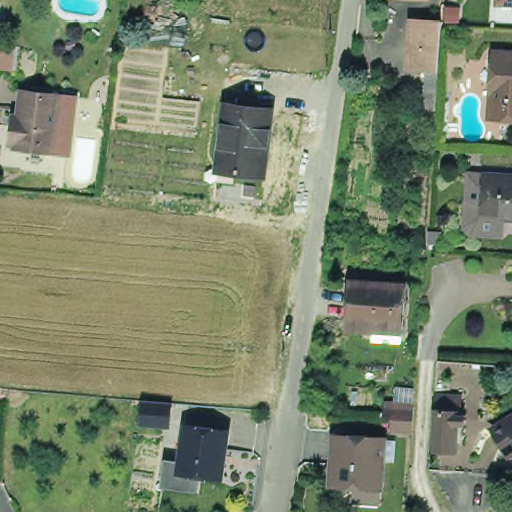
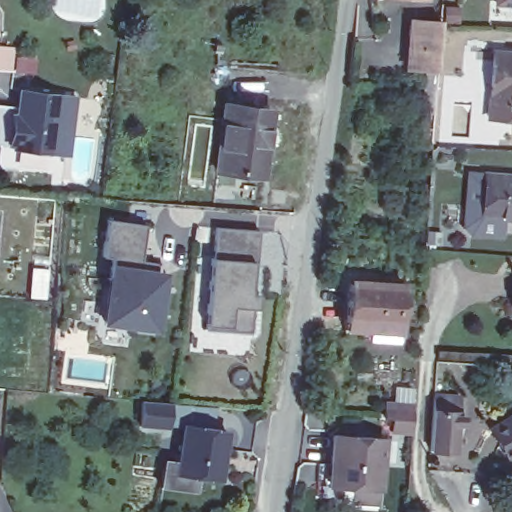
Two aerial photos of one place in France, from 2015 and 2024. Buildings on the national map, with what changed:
unchanged [(505,6),(505,0),(512,0),(512,7),(505,6)]
unchanged [(406,70),(411,20),(441,22),(440,28),(436,73),(406,70)]
unchanged [(484,120),(485,55),(512,55),(512,121),(484,120)]
unchanged [(46,129),(10,125),(5,119),(7,102),(12,102),(17,67),(54,72),(46,129)]
unchanged [(66,80),(56,151),(0,145),(0,101),(7,102),(5,119),(10,125),(46,129),(54,72),(61,73),(66,80)]
unchanged [(265,168),(218,162),(226,97),(274,104),(265,168)]
unchanged [(472,193),(490,194),(490,177),(512,178),(512,221),(489,221),(471,221),(472,193)]
new [(105,261),(101,261),(107,220),(145,225),(140,267),(167,271),(158,332),(96,324),(105,261)]
new [(205,332),(210,256),(213,257),(215,228),(261,232),(257,294),(256,310),(253,335),(205,332)]
unchanged [(344,329),(345,321),(347,282),(404,286),(401,326),(401,332),(344,329)]
unchanged [(431,451),(433,411),(434,396),(457,397),(457,413),(455,452),(431,451)]
unchanged [(165,425),(136,422),(140,397),(167,398),(165,425)]
unchanged [(495,417),(512,406),(512,442),(495,417)]
unchanged [(383,422),(377,421),(378,408),(406,410),(406,423),(405,436),(385,435),(383,422)]
unchanged [(176,462),(181,422),(228,428),(221,481),(197,477),(175,475),(176,462)]
unchanged [(349,505),(348,490),(325,487),(329,437),(380,441),(376,492),(375,507),(349,505)]

